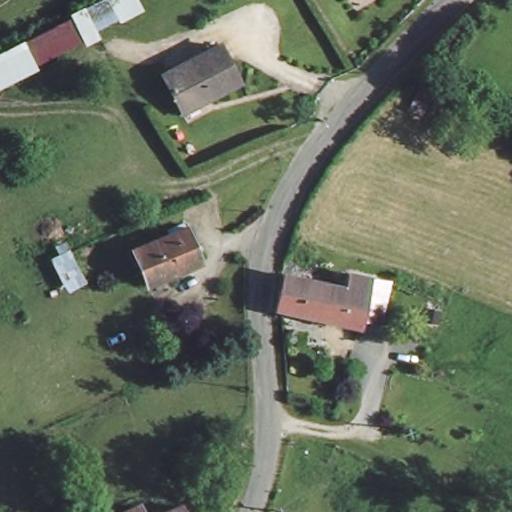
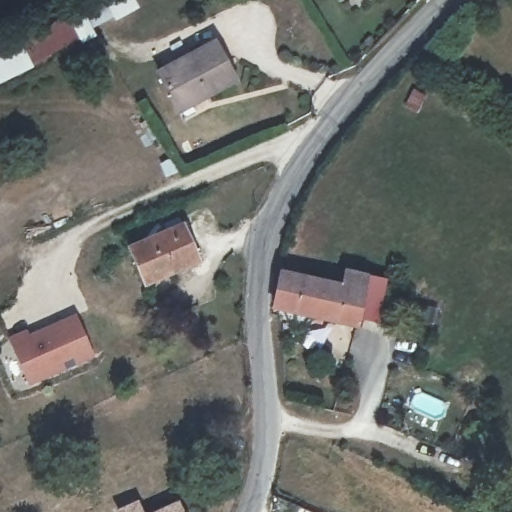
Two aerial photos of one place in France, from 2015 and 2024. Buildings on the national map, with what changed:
unchanged [(64,9),(87,0),(133,0),(136,8),(75,35),(64,9)]
unchanged [(176,102),(161,70),(219,44),(238,83),(214,94),(179,110),(176,102)]
unchanged [(143,281),(131,251),(181,230),(196,260),(143,281)]
unchanged [(388,257),(383,312),(378,325),(273,312),(276,275),(346,278),(348,255),(388,257)]
new [(76,313),(94,357),(28,386),(7,337),(26,328),(28,333),(76,313)]
unchanged [(140,502),(145,512),(117,512),(140,502)]
unchanged [(180,503),(184,512),(161,512),(180,503)]

